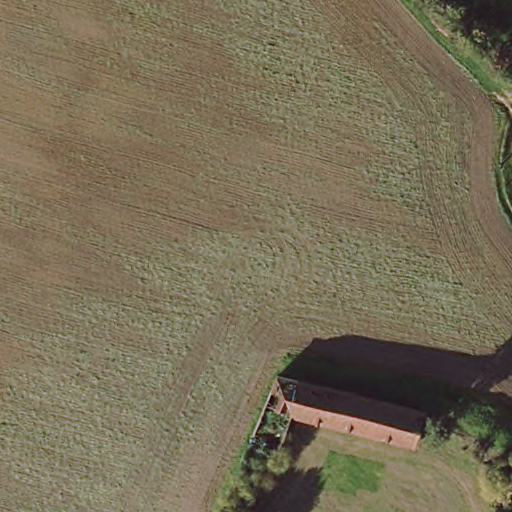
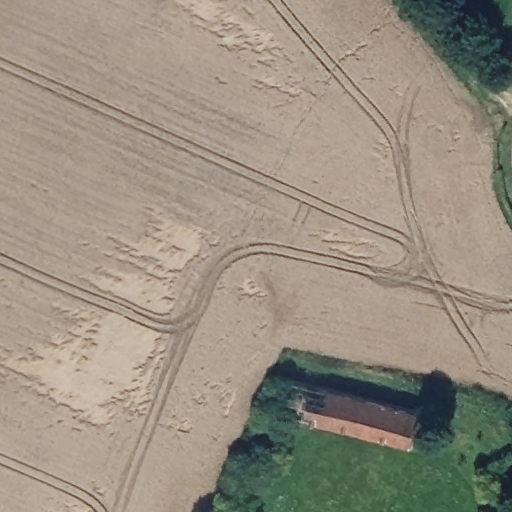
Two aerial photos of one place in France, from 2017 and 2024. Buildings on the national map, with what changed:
unchanged [(276,374),(430,413),(407,443),(293,416),(275,456),(243,442),(276,374)]

